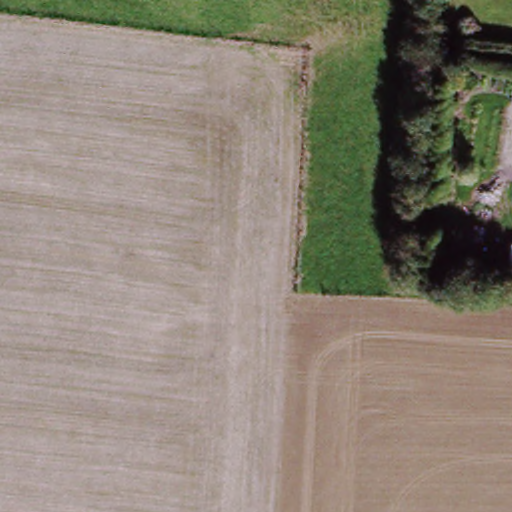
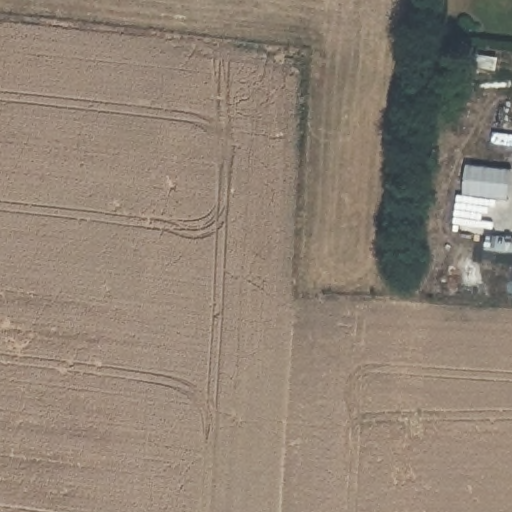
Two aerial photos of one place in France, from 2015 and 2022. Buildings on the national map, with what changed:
new [(463,193),(466,164),(511,169),(507,199),(463,193)]

